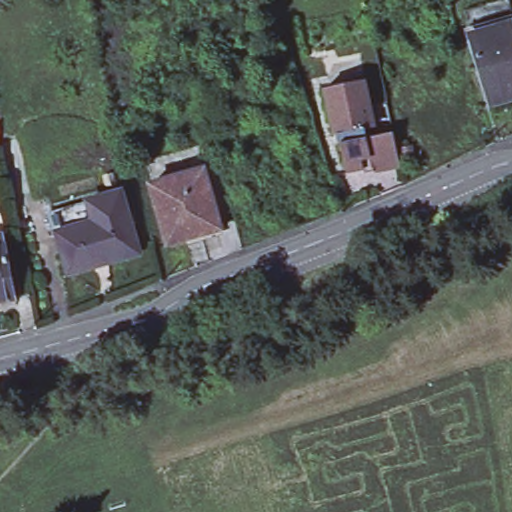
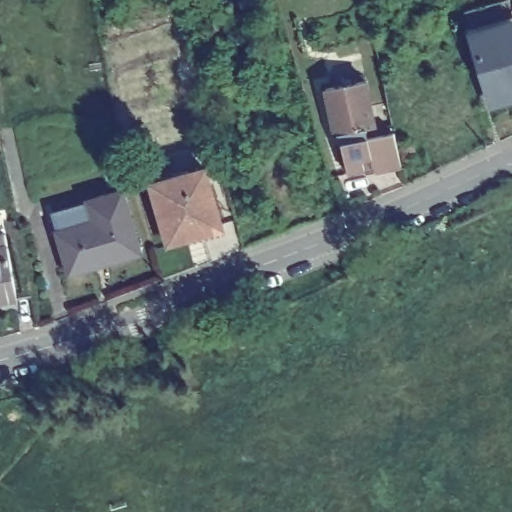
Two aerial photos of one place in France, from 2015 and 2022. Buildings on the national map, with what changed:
unchanged [(512,30),(473,41),(469,25),(466,25),(465,16),(510,4),(512,13),(512,30)]
unchanged [(473,41),(512,30),(512,104),(492,109),(473,41)]
unchanged [(335,136),(326,89),(365,80),(375,128),(366,129),(340,135),(335,136)]
unchanged [(340,135),(366,129),(368,138),(395,133),(401,167),(374,173),(373,168),(347,173),(340,135)]
unchanged [(1,150),(0,150),(0,144),(1,150)]
unchanged [(168,245),(152,184),(205,169),(222,230),(168,245)]
unchanged [(63,243),(58,223),(95,212),(127,203),(145,264),(75,284),(75,283),(63,243)]
unchanged [(5,234),(17,299),(0,303),(0,235),(5,234)]

